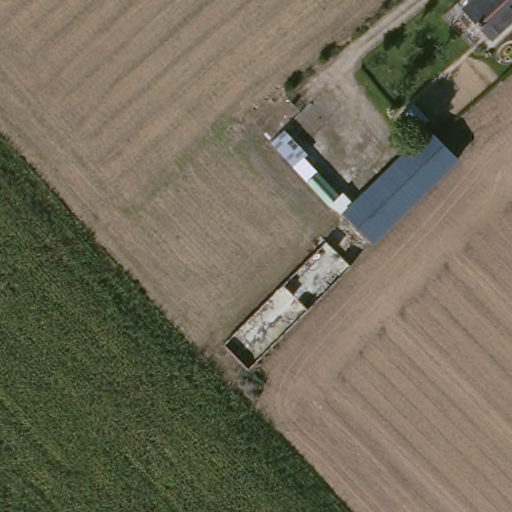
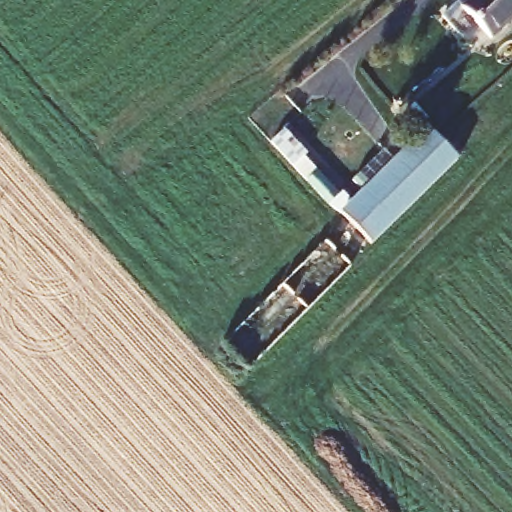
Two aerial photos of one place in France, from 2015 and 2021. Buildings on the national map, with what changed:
unchanged [(476,0),(512,0),(512,25),(491,42),(463,11),(476,0)]
unchanged [(272,143),(283,130),(308,155),(305,158),(340,195),(343,192),(352,202),(340,212),(272,143)]
unchanged [(426,132),(458,165),(371,246),(340,212),(347,206),(393,162),(426,132)]
unchanged [(332,249),(355,276),(246,373),(222,345),(309,269),(332,249)]

